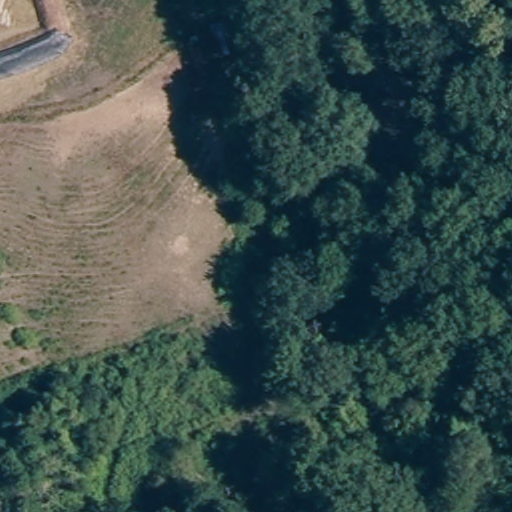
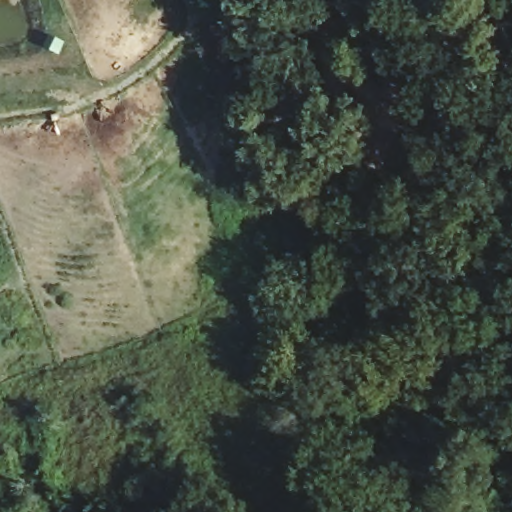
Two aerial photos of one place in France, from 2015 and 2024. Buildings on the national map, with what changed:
[]

